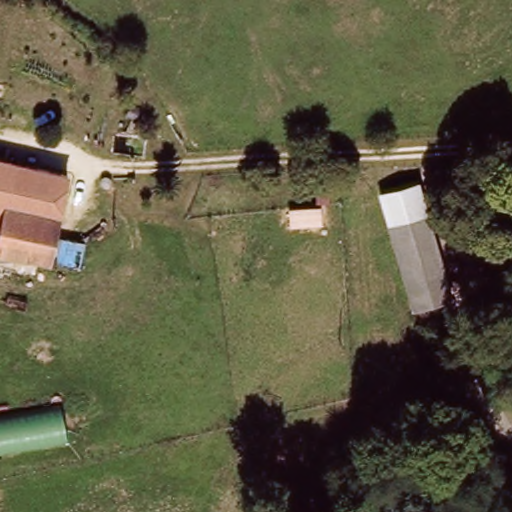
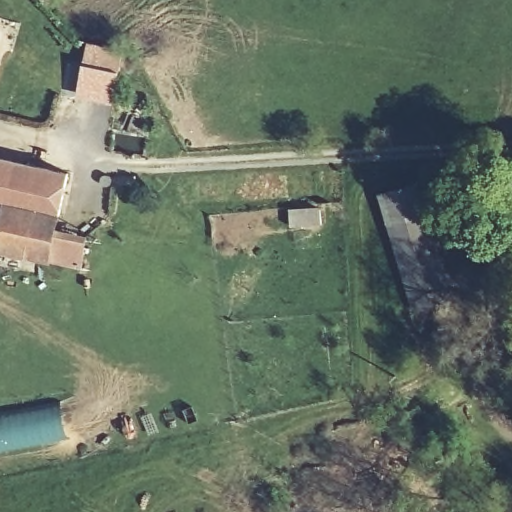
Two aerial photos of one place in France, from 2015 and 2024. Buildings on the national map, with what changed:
new [(120,72),(115,104),(76,97),(82,65),(86,44),(123,50),(120,72)]
unchanged [(121,141),(114,141),(112,128),(119,127),(121,141)]
unchanged [(66,179),(53,246),(71,250),(68,269),(0,252),(0,162),(66,179)]
unchanged [(410,312),(373,185),(419,175),(452,301),(410,312)]
unchanged [(68,438),(0,452),(0,409),(60,398),(68,438)]

